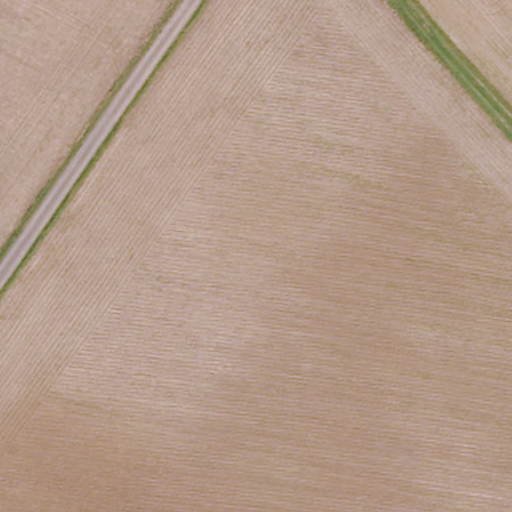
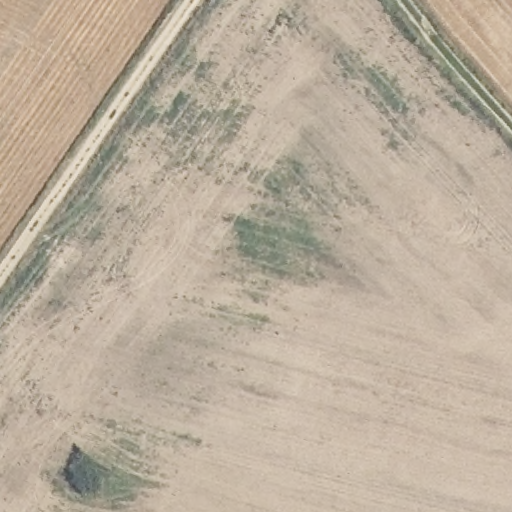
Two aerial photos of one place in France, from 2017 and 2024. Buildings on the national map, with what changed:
[]

